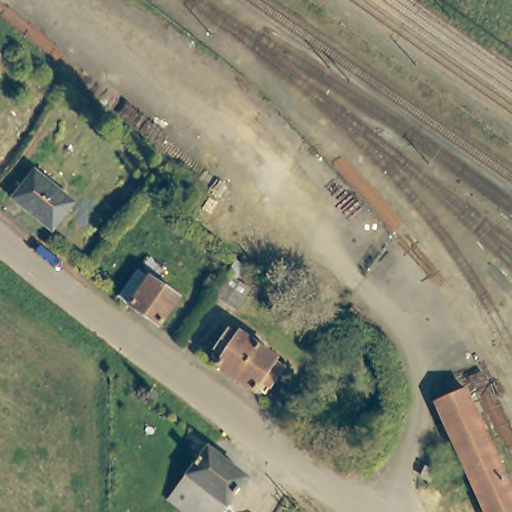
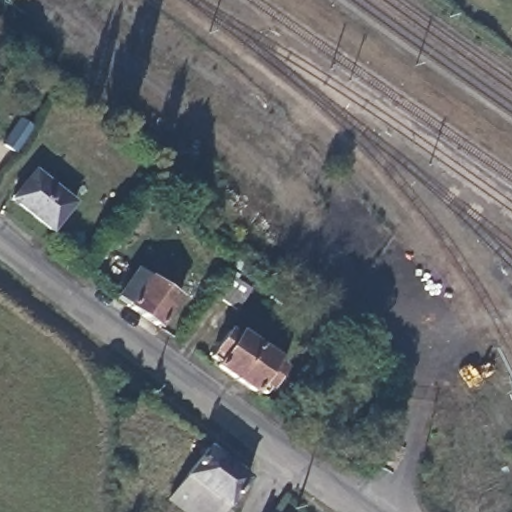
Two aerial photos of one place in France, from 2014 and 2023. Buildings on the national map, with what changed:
unchanged [(52,233),(11,200),(34,173),(74,205),(52,233)]
unchanged [(235,308),(210,292),(222,274),(235,255),(245,262),(232,280),(247,290),(235,308)]
unchanged [(127,308),(148,278),(178,299),(157,329),(127,308)]
unchanged [(215,364),(218,360),(210,354),(230,328),(238,334),(241,330),(258,342),(234,377),(215,364)]
unchanged [(277,355),(275,359),(282,366),(268,385),(260,380),(252,390),(234,377),(258,342),(277,355)]
demolished [(512,493),(512,512),(483,512),(433,403),(465,388),(512,493)]
unchanged [(215,512),(188,512),(166,494),(206,447),(244,476),(215,512)]

